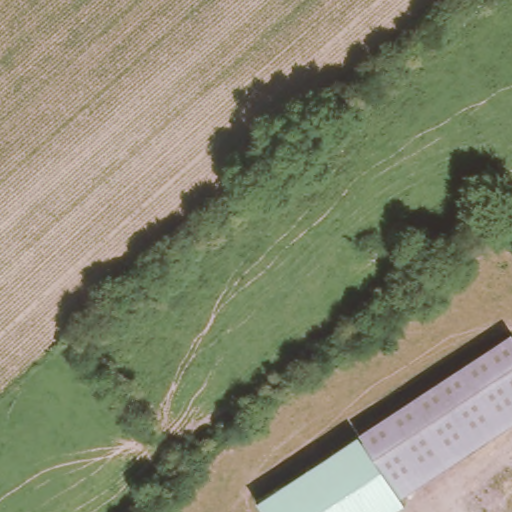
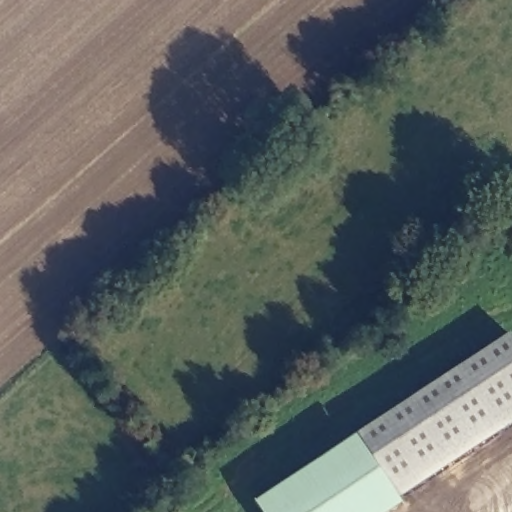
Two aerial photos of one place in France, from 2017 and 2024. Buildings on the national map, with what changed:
unchanged [(512,333),(512,424),(399,498),(357,435),(512,333)]
unchanged [(399,498),(403,505),(392,512),(265,512),(259,502),(357,435),(399,498)]

